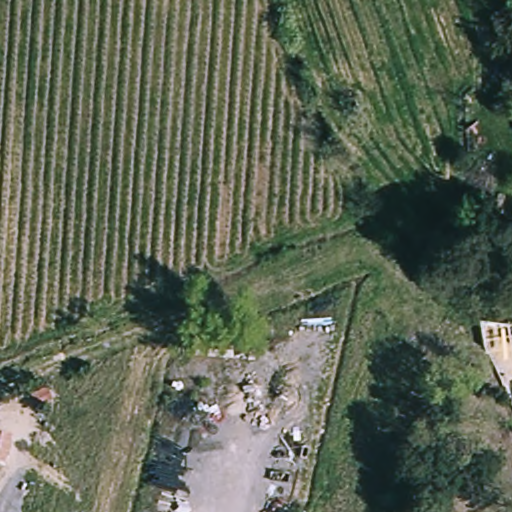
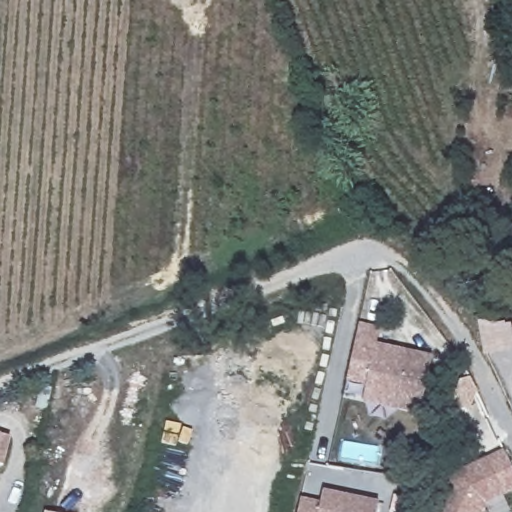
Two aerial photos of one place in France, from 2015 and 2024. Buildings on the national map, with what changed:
unchanged [(489,350),(481,318),(509,321),(512,345),(489,350)]
new [(351,379),(364,323),(383,327),(379,343),(399,348),(408,350),(435,356),(422,412),(403,408),(364,399),(369,383),(351,379)]
unchanged [(0,460),(0,430),(8,431),(0,460)]
new [(506,449),(512,462),(512,490),(486,502),(481,512),(438,512),(451,484),(456,473),(506,449)]
new [(324,501),(326,489),(382,502),(380,512),(300,512),(304,496),(324,501)]

